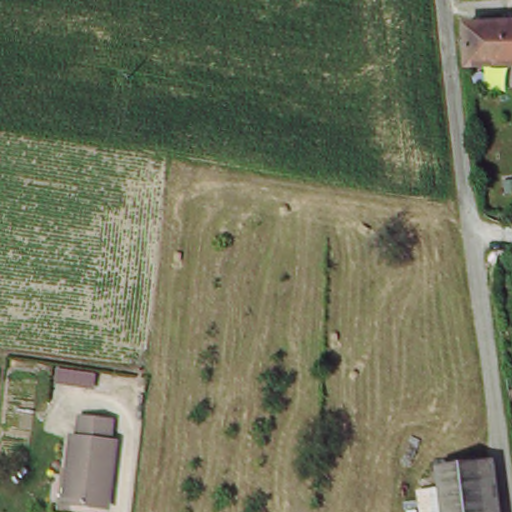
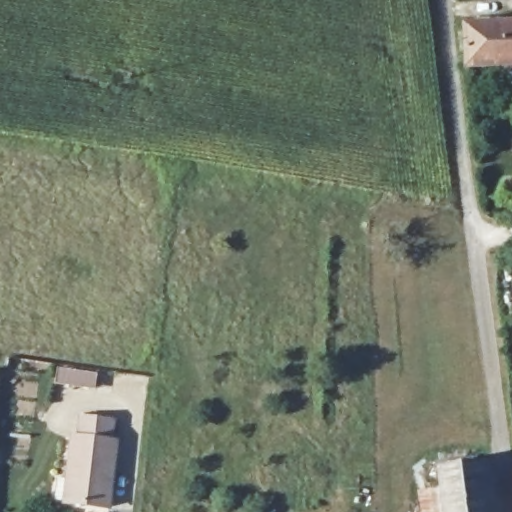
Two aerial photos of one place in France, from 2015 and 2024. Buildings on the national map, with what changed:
unchanged [(463,69),(462,26),(512,25),(512,67),(463,69)]
unchanged [(70,460),(74,431),(80,432),(82,413),(114,416),(112,436),(117,437),(111,505),(73,501),(66,500),(70,460)]
unchanged [(484,471),(489,512),(448,512),(444,466),(463,465),(482,463),(483,463),(484,471)]

